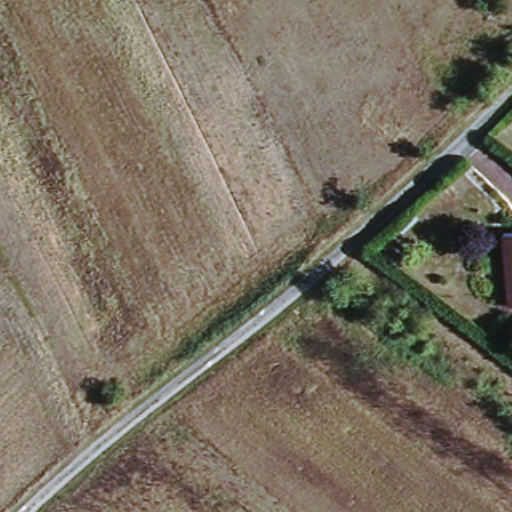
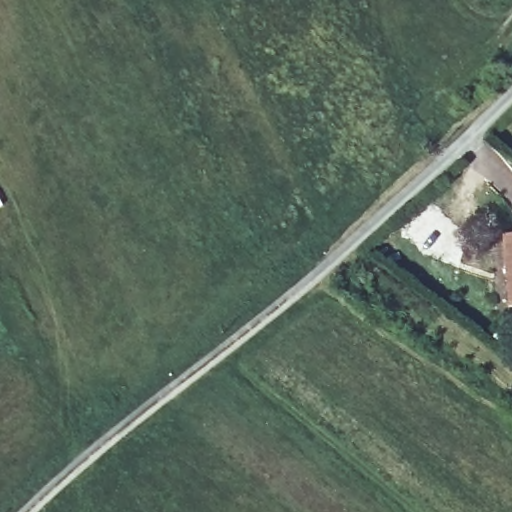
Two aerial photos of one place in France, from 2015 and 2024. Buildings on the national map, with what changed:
unchanged [(502,234),(512,233),(512,304),(508,304),(502,234)]

